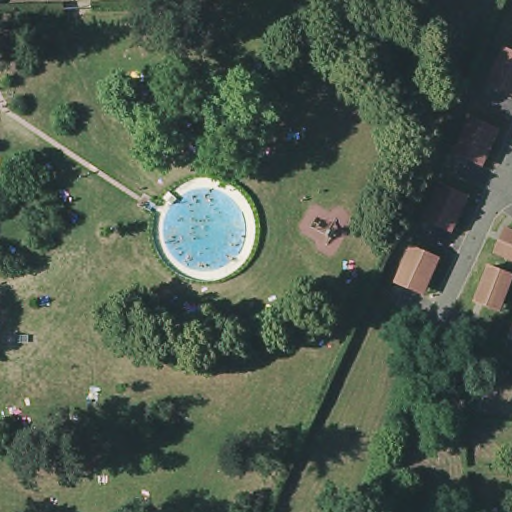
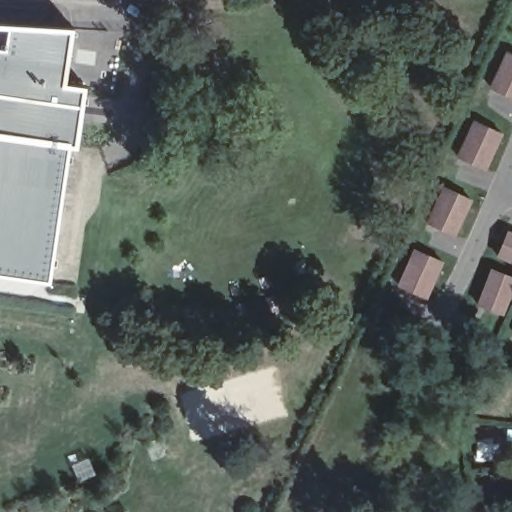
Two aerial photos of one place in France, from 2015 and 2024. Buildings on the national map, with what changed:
new [(73,28),(66,83),(86,86),(77,148),(70,147),(50,283),(0,275),(0,23),(73,28)]
unchanged [(512,96),(490,85),(506,52),(512,55),(512,96)]
unchanged [(505,132),(485,170),(455,153),(473,117),(505,132)]
unchanged [(473,198),(455,235),(425,219),(442,184),(473,198)]
unchanged [(512,261),(495,254),(507,229),(512,231),(512,261)]
unchanged [(442,260),(426,295),(398,283),(412,247),(442,260)]
unchanged [(512,286),(502,313),(474,304),(487,266),(512,274),(512,286)]

